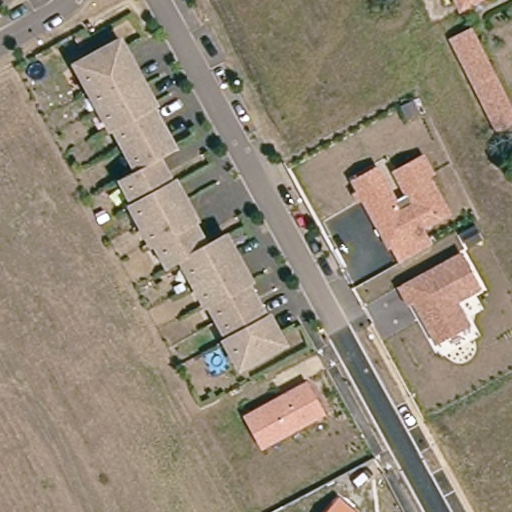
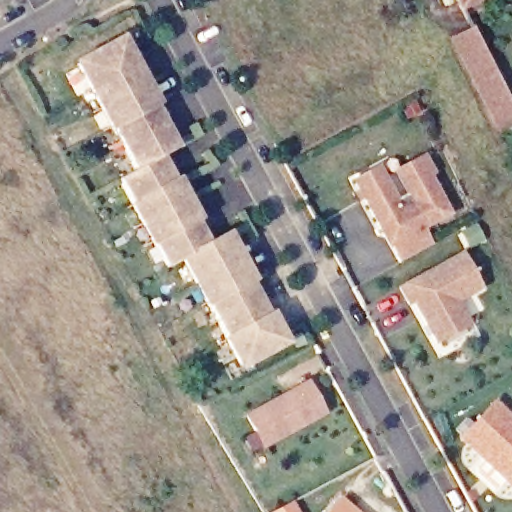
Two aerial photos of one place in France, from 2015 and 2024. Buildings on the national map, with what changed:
unchanged [(465,9),(460,0),(483,0),(465,9)]
unchanged [(512,103),(512,125),(500,130),(454,39),(475,29),(512,103)]
unchanged [(222,345),(192,288),(179,263),(171,267),(162,272),(149,246),(128,209),(115,183),(122,179),(131,174),(117,149),(86,93),(72,67),(81,63),(116,44),(174,151),(157,160),(205,248),(222,240),(279,346),(244,366),(236,370),(222,345)]
unchanged [(391,247),(387,250),(361,202),(357,204),(351,192),(357,189),(352,180),(378,165),(394,197),(405,192),(396,170),(424,154),(437,177),(431,181),(450,217),(424,231),(431,244),(397,262),(391,247)]
unchanged [(414,306),(408,309),(396,287),(462,250),(483,288),(461,301),(471,325),(436,344),(414,306)]
unchanged [(326,415),(260,449),(242,415),(307,381),(326,415)]
new [(457,441),(495,399),(512,416),(512,492),(457,441)]
unchanged [(326,512),(338,497),(356,512),(326,512)]

